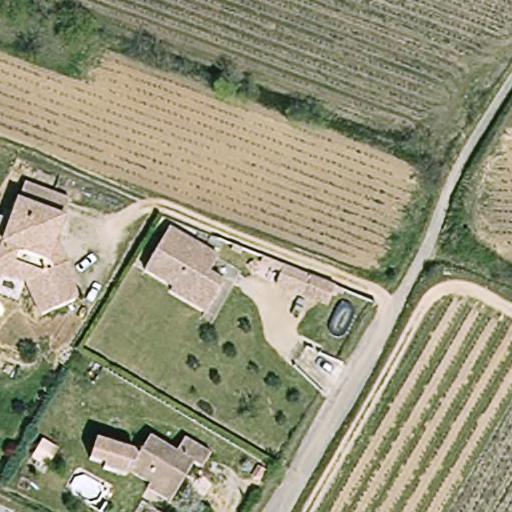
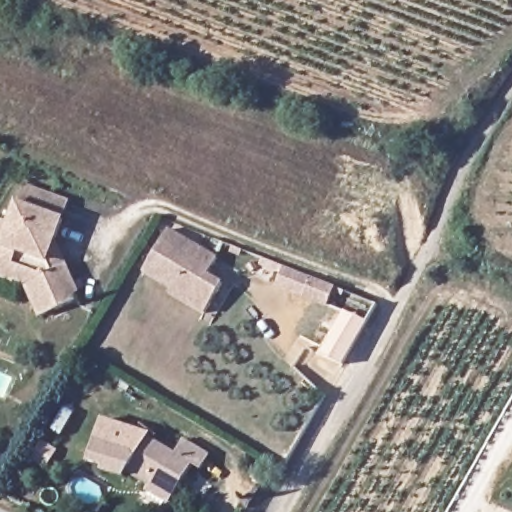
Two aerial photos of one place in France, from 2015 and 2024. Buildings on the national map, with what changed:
unchanged [(80,291),(76,301),(43,317),(27,283),(17,279),(17,281),(0,275),(0,224),(2,218),(12,222),(18,202),(25,184),(70,201),(64,219),(56,241),(67,264),(80,291)]
unchanged [(223,256),(213,273),(229,282),(212,312),(177,292),(179,287),(150,271),(173,229),(223,256)]
unchanged [(282,271),(335,291),(327,310),(275,290),(280,277),(255,267),(257,261),(282,271)]
unchanged [(149,492),(152,487),(130,475),(127,480),(105,474),(105,469),(90,465),(96,444),(133,455),(138,461),(150,439),(177,454),(185,440),(212,455),(203,470),(195,465),(175,500),(172,506),(149,492)]

